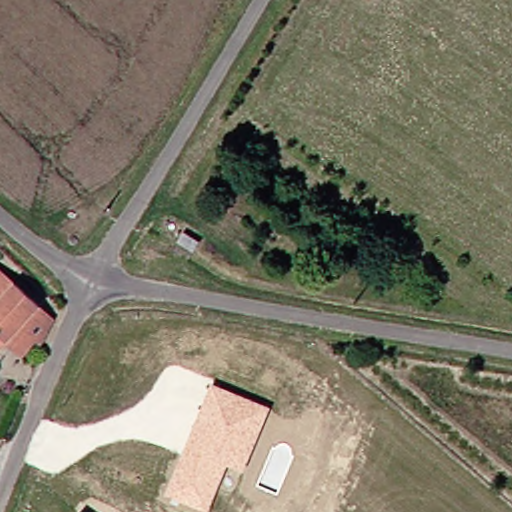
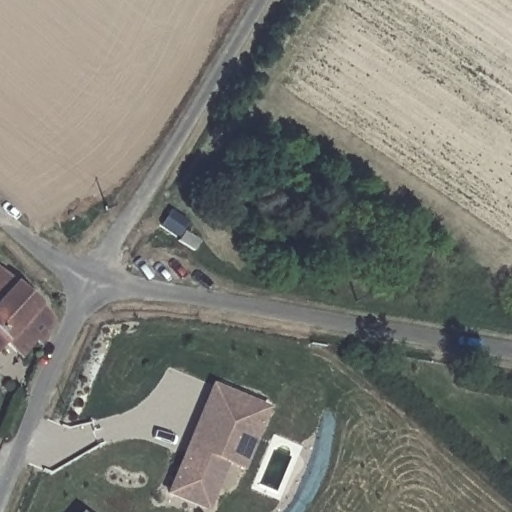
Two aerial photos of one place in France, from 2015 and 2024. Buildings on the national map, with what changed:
unchanged [(0,344),(0,274),(44,316),(30,343),(25,339),(11,354),(0,344)]
unchanged [(269,406),(243,473),(226,467),(209,512),(204,512),(164,495),(211,383),(269,406)]

